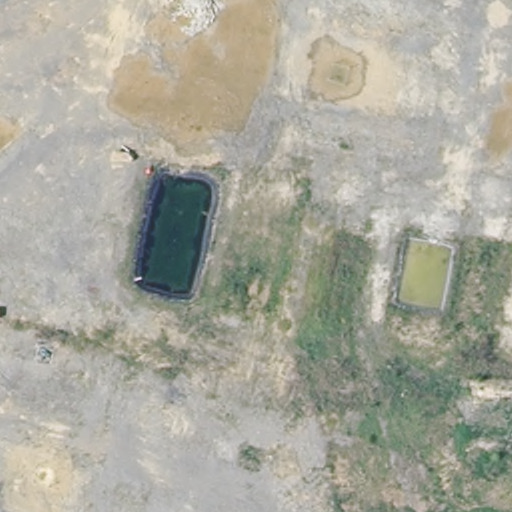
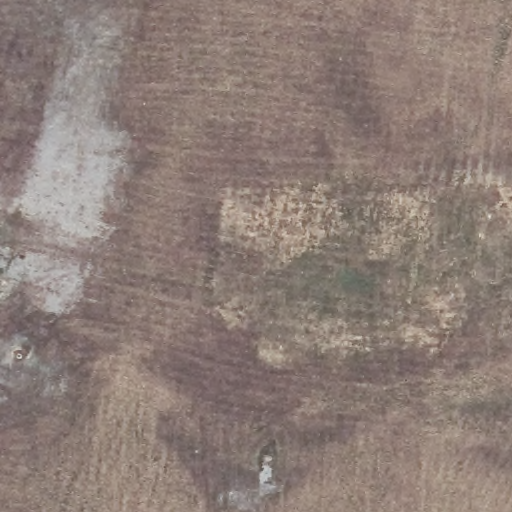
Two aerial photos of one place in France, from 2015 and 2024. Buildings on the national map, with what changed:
[]

